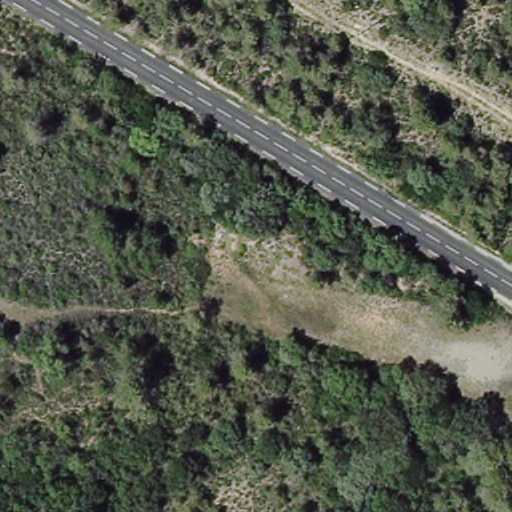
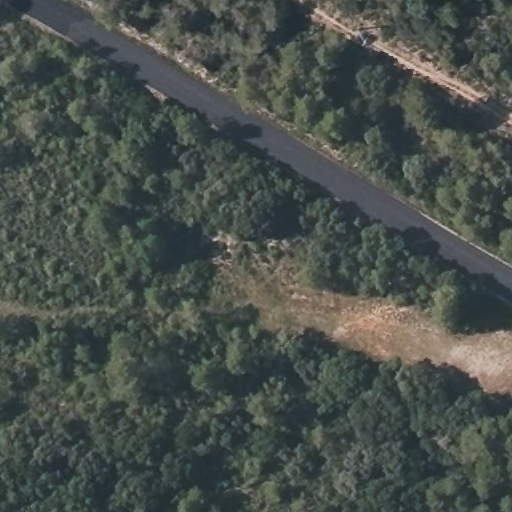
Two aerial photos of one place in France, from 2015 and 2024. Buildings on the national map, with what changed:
[]

